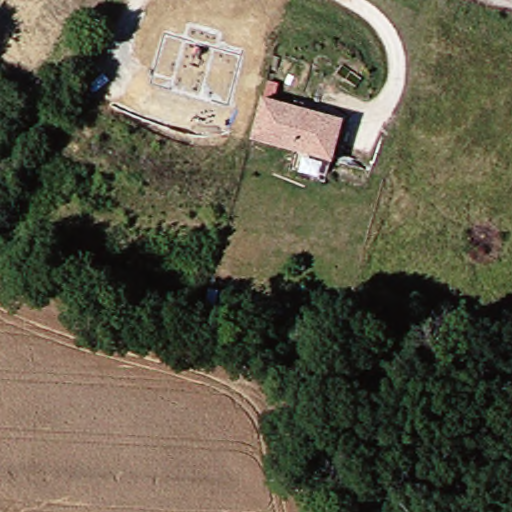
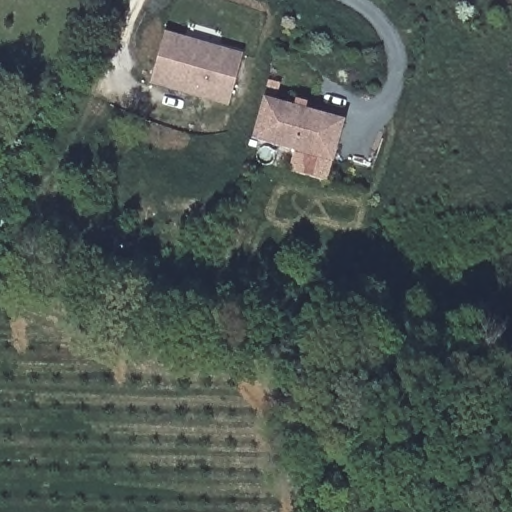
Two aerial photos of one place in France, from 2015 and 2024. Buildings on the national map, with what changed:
new [(165,31),(244,54),(228,106),(150,85),(165,31)]
unchanged [(344,124),(333,164),(254,140),(265,100),(344,124)]

